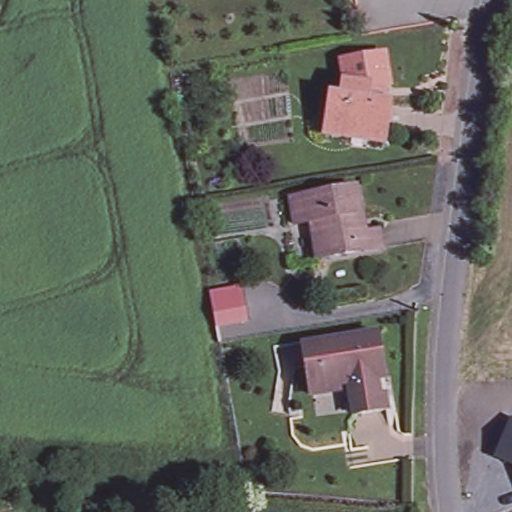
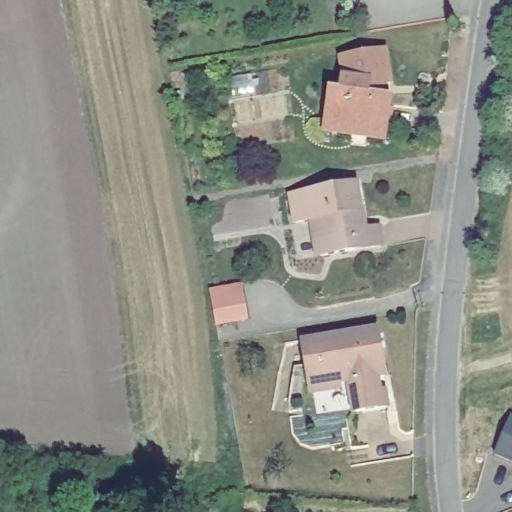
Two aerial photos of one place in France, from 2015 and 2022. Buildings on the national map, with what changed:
unchanged [(343,56),(387,49),(393,81),(382,84),(380,94),(370,92),(370,81),(345,77),(343,56)]
unchanged [(352,133),(327,128),(333,86),(344,88),(345,77),(370,81),(370,92),(380,94),(392,96),(387,125),(385,139),(352,133)]
unchanged [(316,220),(298,223),(294,196),(362,186),(367,213),(364,214),(368,233),(385,230),(387,248),(323,257),(316,220)]
unchanged [(236,283),(245,320),(214,325),(207,288),(236,283)]
unchanged [(379,330),(385,364),(380,376),(382,393),(387,392),(390,408),(360,413),(353,379),(342,381),(342,390),(315,393),(306,342),(379,330)]
unchanged [(495,454),(510,415),(512,416),(512,461),(495,454)]

